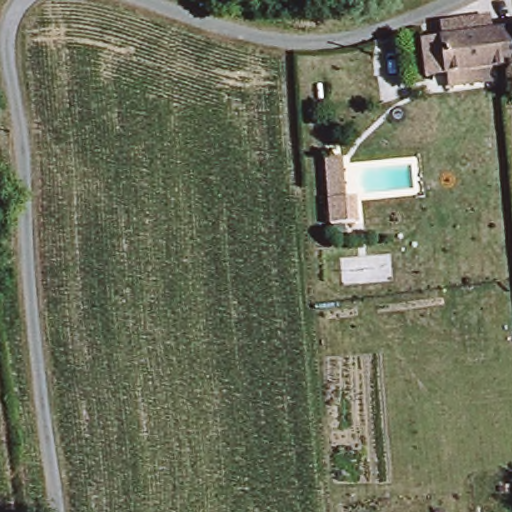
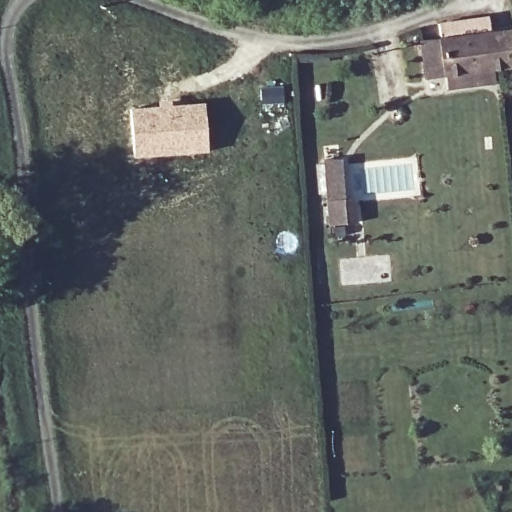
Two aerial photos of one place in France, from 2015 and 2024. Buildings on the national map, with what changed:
unchanged [(497,45),(502,62),(443,71),(436,39),(431,21),(459,15),(463,34),(508,25),(512,41),(497,45)]
unchanged [(508,25),(512,24),(512,41),(508,25)]
unchanged [(502,62),(497,45),(512,41),(512,61),(502,62)]
new [(205,101),(209,152),(134,157),(129,107),(205,101)]
unchanged [(342,135),(349,220),(327,220),(323,136),(342,135)]

